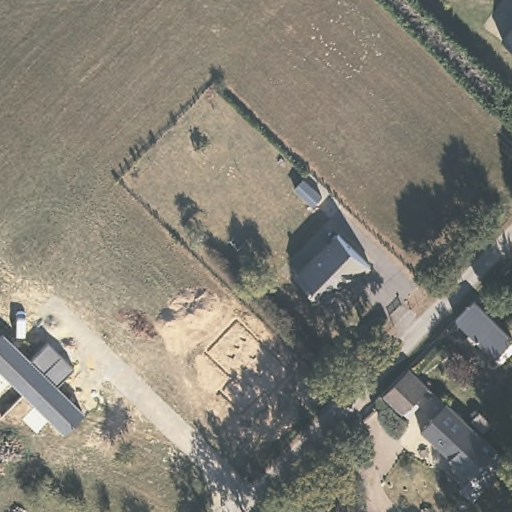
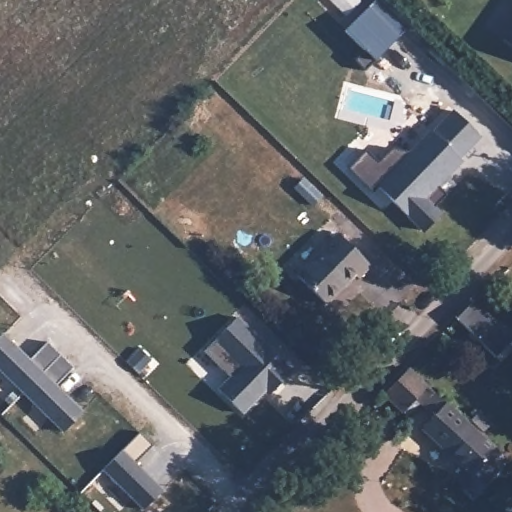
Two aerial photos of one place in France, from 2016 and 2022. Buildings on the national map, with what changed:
new [(363,50),(344,32),(376,0),(381,0),(408,27),(364,71),(354,60),(363,50)]
unchanged [(503,41),(512,29),(512,48),(503,41)]
new [(365,150),(377,161),(392,148),(408,152),(431,130),(433,131),(453,110),(480,136),(461,158),(463,160),(448,176),(449,177),(439,189),(446,195),(434,206),(442,213),(422,233),(406,218),(407,217),(377,187),(373,192),(347,168),(365,150)]
unchanged [(368,268),(354,282),(350,279),(324,305),(294,277),(334,237),(368,268)]
unchanged [(512,337),(512,342),(496,358),(457,319),(474,301),(512,337)]
unchanged [(294,372),(269,396),(265,393),(244,414),(219,391),(231,378),(205,352),(239,318),(294,372)]
unchanged [(57,386),(84,413),(64,433),(0,370),(0,338),(4,334),(31,359),(48,343),(74,369),(57,386)]
unchanged [(428,392),(403,417),(384,396),(409,372),(428,392)]
unchanged [(503,462),(507,466),(482,492),(422,437),(419,435),(446,410),(447,411),(467,428),(503,462)]
new [(139,432),(153,444),(135,462),(163,489),(143,511),(103,471),(139,432)]

